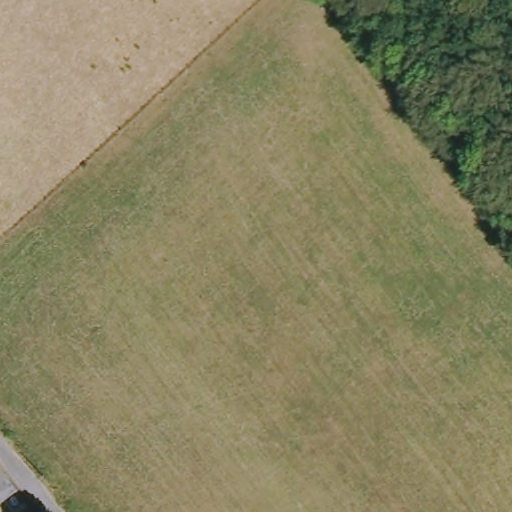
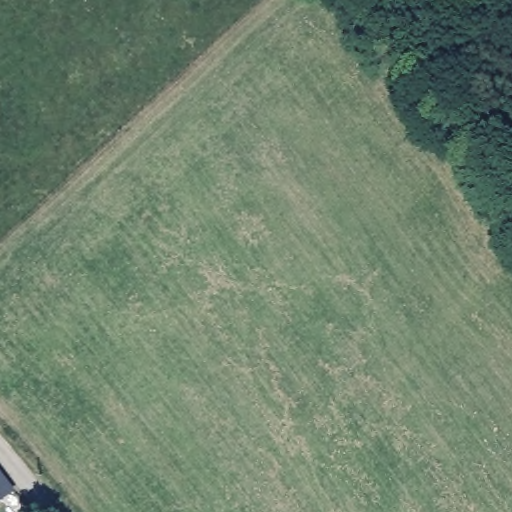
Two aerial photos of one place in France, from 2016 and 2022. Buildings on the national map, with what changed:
unchanged [(0,507),(0,472),(18,494),(0,507)]

